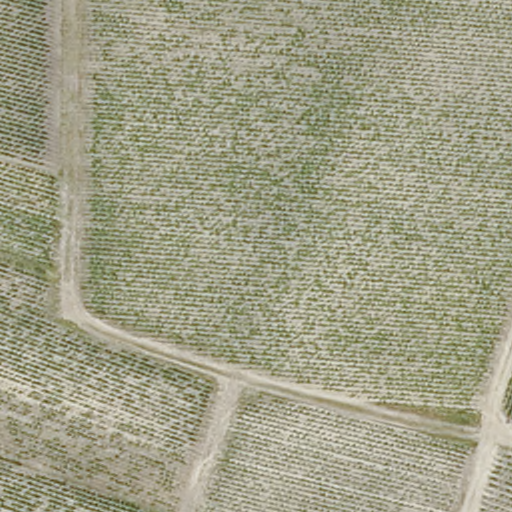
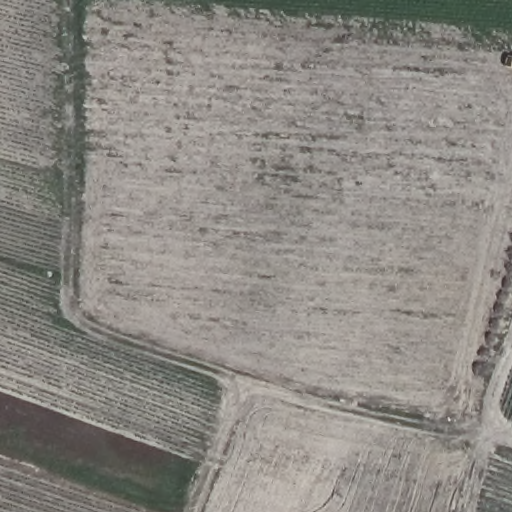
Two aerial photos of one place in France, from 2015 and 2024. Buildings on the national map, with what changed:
[]

